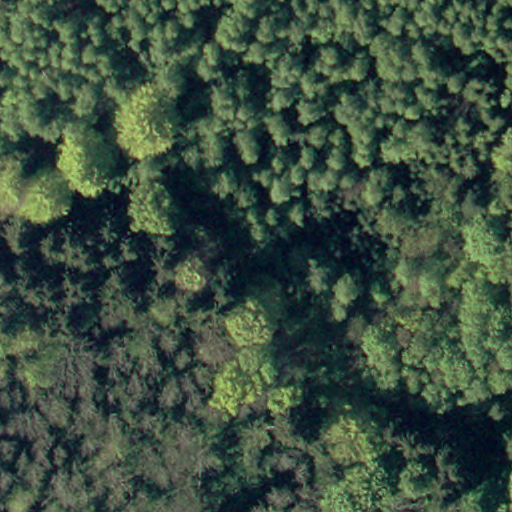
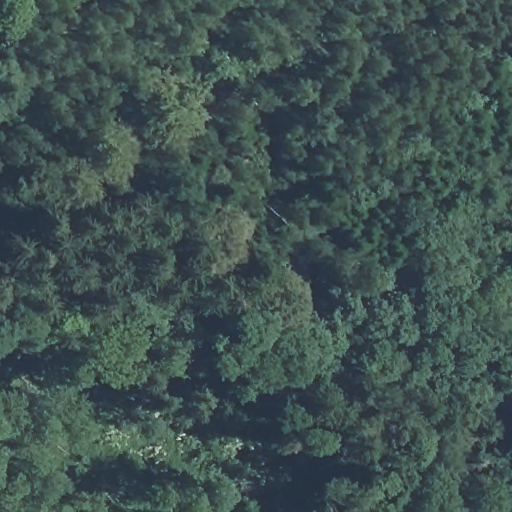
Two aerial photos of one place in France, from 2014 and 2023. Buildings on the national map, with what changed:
unchanged [(512,457),(512,480),(500,485),(493,463),(512,457)]

